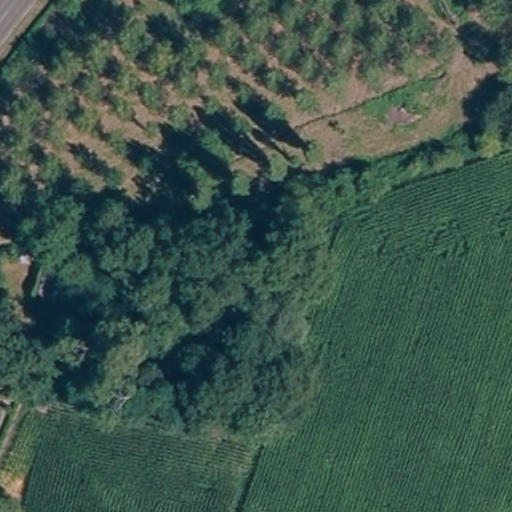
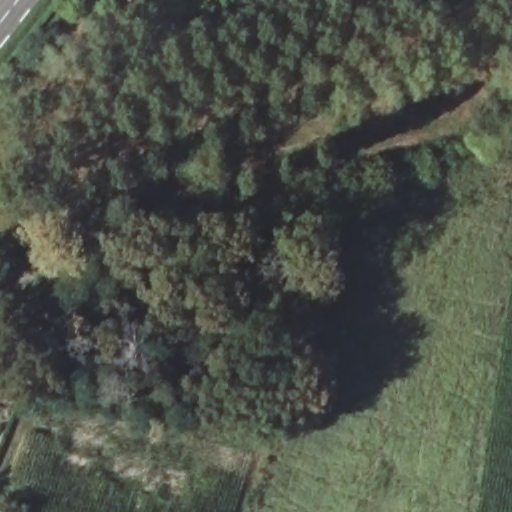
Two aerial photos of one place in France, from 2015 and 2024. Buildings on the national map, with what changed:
unchanged [(48,255),(77,263),(64,307),(35,299),(48,255)]

